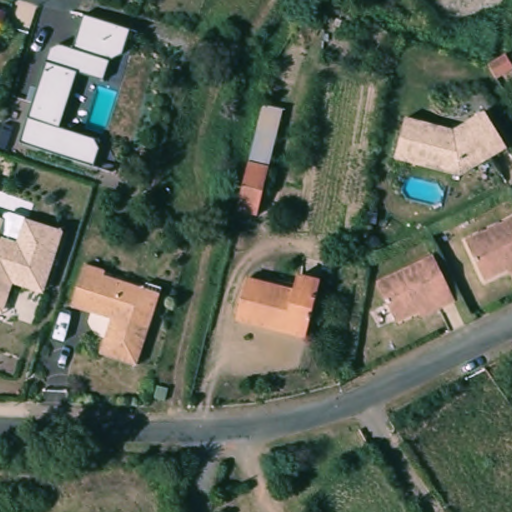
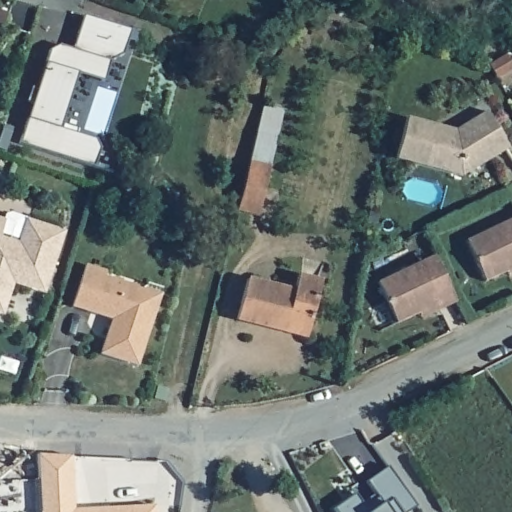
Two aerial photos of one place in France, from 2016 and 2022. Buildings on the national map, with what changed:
unchanged [(29,116),(33,103),(26,100),(31,85),(37,87),(45,64),(50,49),(56,45),(72,50),(83,17),(129,31),(123,54),(109,61),(103,79),(76,72),(58,128),(94,138),(100,149),(94,165),(21,141),(29,116)]
unchanged [(507,33),(512,41),(512,53),(499,60),(491,43),(507,33)]
unchanged [(260,218),(239,212),(252,162),(266,106),(287,111),(274,169),(260,218)]
unchanged [(507,149),(457,176),(393,160),(406,118),(453,131),(485,112),(507,149)]
unchanged [(0,226),(0,220),(1,220),(0,226)]
unchanged [(24,221),(63,232),(44,296),(13,288),(6,314),(0,312),(0,237),(16,242),(24,221)]
unchanged [(512,222),(512,274),(485,286),(466,243),(512,222)]
unchanged [(435,257),(457,306),(438,315),(435,310),(396,328),(377,285),(435,257)]
unchanged [(101,274),(157,295),(138,368),(98,356),(108,320),(71,309),(81,269),(101,274)]
unchanged [(293,293),(297,278),(322,284),(309,340),(239,322),(249,282),(293,293)]
new [(71,454),(73,509),(110,507),(154,506),(154,512),(40,512),(37,452),(71,454)]
new [(338,512),(335,507),(355,493),(362,505),(378,497),(367,481),(387,466),(414,505),(405,512),(338,512)]

